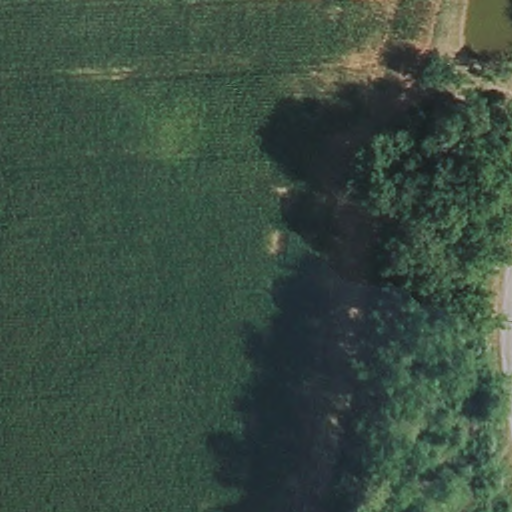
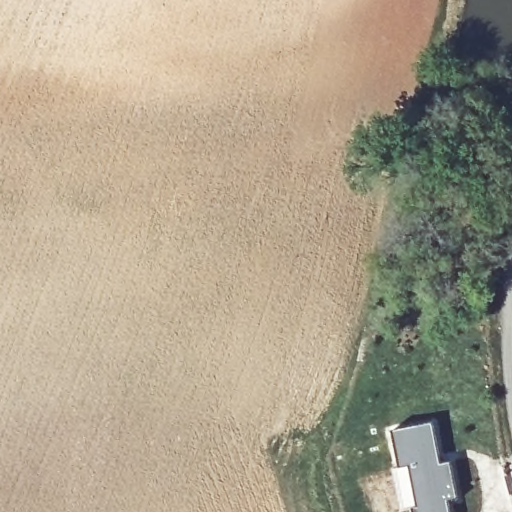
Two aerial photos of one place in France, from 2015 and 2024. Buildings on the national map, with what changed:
new [(434,421),(442,463),(452,461),(459,499),(450,501),(451,512),(413,512),(413,507),(401,510),(392,468),(400,467),(393,429),(434,421)]

